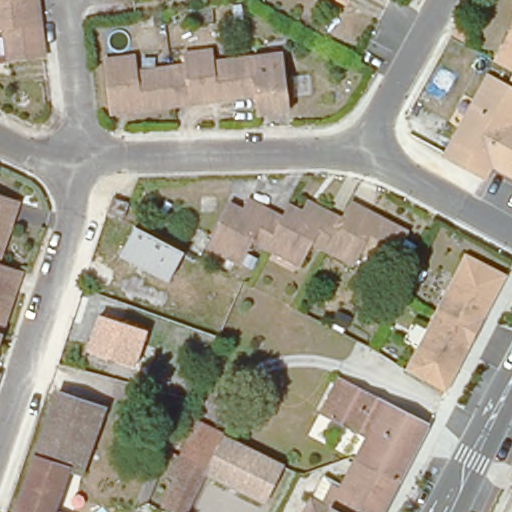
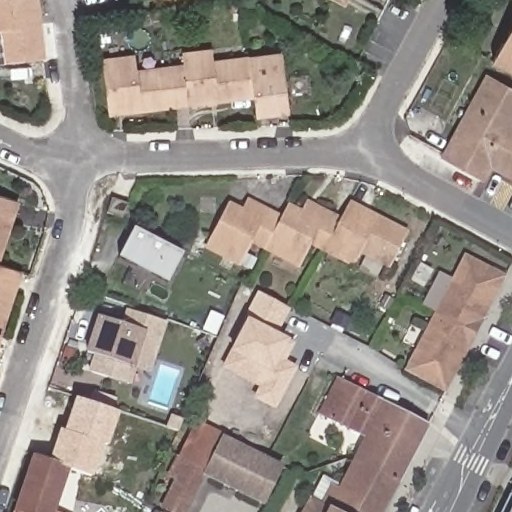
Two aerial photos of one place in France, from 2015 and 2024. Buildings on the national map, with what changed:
unchanged [(30,3),(39,55),(0,61),(0,0),(30,0),(30,3)]
unchanged [(340,5),(330,0),(344,0),(340,5)]
unchanged [(470,29),(464,41),(447,33),(448,31),(454,20),(470,29)]
unchanged [(503,60),(499,58),(498,57),(495,56),(504,39),(511,27),(512,25),(512,65),(503,60)]
unchanged [(100,62),(131,58),(133,70),(166,65),(180,64),(179,52),(207,48),(208,60),(246,54),(279,50),(287,104),(254,109),(252,97),(251,90),(172,102),(106,110),(100,62)]
unchanged [(485,73),(512,87),(512,107),(507,117),(512,120),(512,166),(488,153),(481,166),(446,147),(485,73)]
unchanged [(133,197),(127,214),(109,209),(114,192),(133,197)]
unchanged [(0,228),(0,193),(10,196),(0,228)]
unchanged [(287,201),(289,197),(304,205),(310,197),(327,206),(342,214),(344,209),(349,199),(406,230),(386,266),(358,250),(350,264),(323,248),(309,240),(295,264),(262,245),(249,238),(237,260),(203,241),(225,201),(240,209),(245,200),(263,210),(278,218),(287,201)]
unchanged [(184,252),(168,283),(120,256),(135,226),(184,252)]
unchanged [(442,385),(439,384),(429,378),(403,365),(402,364),(431,309),(462,251),(502,272),(491,293),(485,304),(477,319),(471,330),(465,343),(458,356),(452,366),(442,385)]
unchanged [(13,266),(0,303),(0,262),(3,263),(13,266)]
new [(276,409),(254,397),(259,387),(222,366),(230,352),(249,318),(244,316),(258,291),(290,308),(275,331),(289,338),(295,343),(286,360),(299,367),(276,409)]
unchanged [(147,331),(136,367),(87,350),(98,314),(147,331)]
unchanged [(396,474),(395,474),(351,453),(364,428),(320,404),(337,374),(424,419),(396,474)]
unchanged [(28,455),(50,392),(98,408),(75,471),(62,466),(28,455)]
unchanged [(185,427),(187,428),(190,421),(219,434),(205,463),(175,448),(185,427)]
unchanged [(222,429),(279,458),(279,459),(261,494),(204,466),(182,510),(158,498),(171,471),(165,468),(175,448),(205,463),(219,434),(221,431),(222,429)]
unchanged [(298,512),(308,492),(319,497),(330,475),(339,478),(351,453),(395,474),(396,474),(376,512),(298,512)]
unchanged [(47,512),(9,512),(28,455),(62,466),(47,512)]
unchanged [(500,512),(512,488),(512,512),(500,512)]

